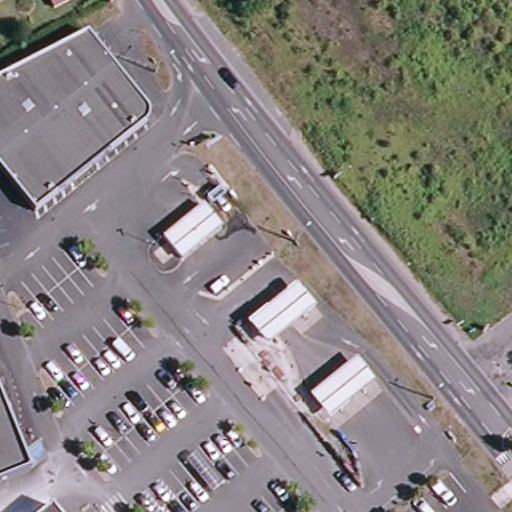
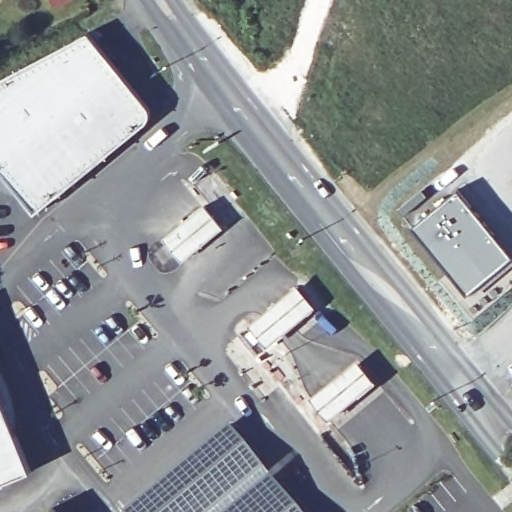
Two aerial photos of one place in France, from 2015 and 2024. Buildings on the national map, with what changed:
unchanged [(57,5),(54,0),(67,0),(57,5)]
unchanged [(150,125),(147,130),(35,220),(0,176),(0,86),(89,40),(150,115),(150,125)]
new [(458,189),(512,253),(512,259),(470,293),(414,225),(458,189)]
unchanged [(204,210),(219,231),(183,262),(162,242),(204,210)]
unchanged [(297,287),(315,310),(269,352),(247,327),(297,287)]
unchanged [(356,363),(377,387),(329,426),(307,403),(356,363)]
unchanged [(0,489),(0,368),(42,472),(0,489)]
new [(258,450),(309,512),(131,512),(125,505),(229,418),(258,450)]
unchanged [(52,512),(44,512),(49,508),(52,512)]

